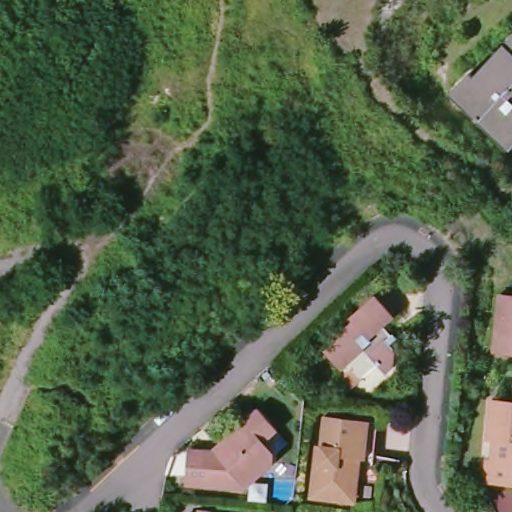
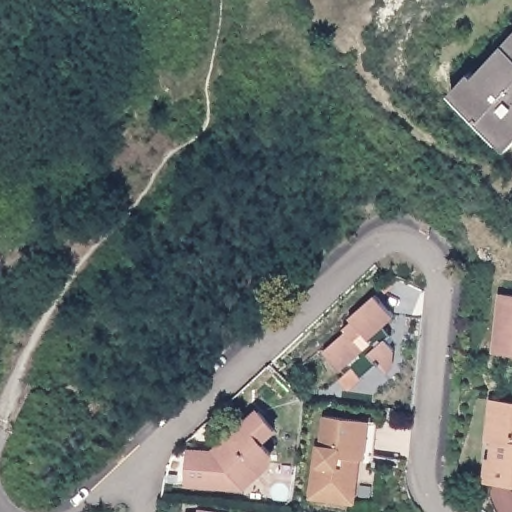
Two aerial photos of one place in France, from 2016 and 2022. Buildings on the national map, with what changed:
unchanged [(472,74),(476,78),(512,40),(512,142),(507,147),(452,96),(472,74)]
unchanged [(495,352),(496,342),(500,294),(512,295),(512,353),(495,352)]
unchanged [(354,370),(345,376),(324,352),(347,331),(345,328),(352,321),(351,319),(375,297),(394,317),(384,327),(391,336),(394,335),(397,338),(390,345),(395,351),(392,368),(385,375),(377,366),(362,378),(354,370)]
unchanged [(489,482),(492,457),(494,457),(495,440),(490,440),(493,401),(512,403),(512,484),(489,482)]
unchanged [(358,501),(350,501),(312,496),(314,484),(316,462),(322,462),(327,415),(372,420),(380,421),(377,452),(376,458),(364,457),(358,500),(358,501)]
unchanged [(185,485),(189,452),(215,456),(221,451),(221,446),(252,416),(270,435),(259,447),(269,457),(269,460),(269,462),(269,466),(269,468),(243,492),(185,485)]

